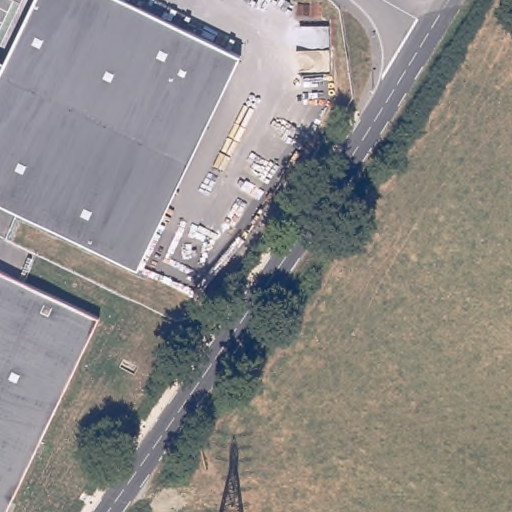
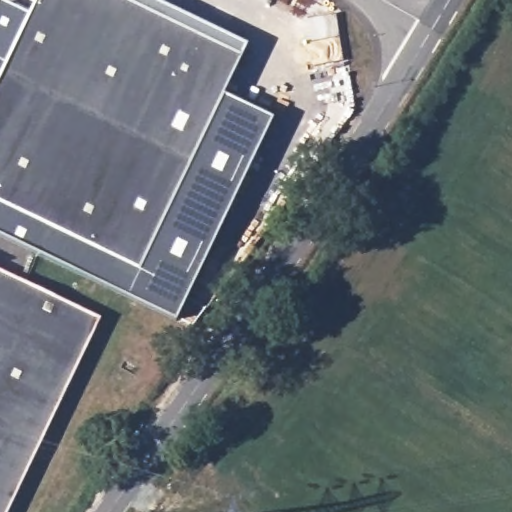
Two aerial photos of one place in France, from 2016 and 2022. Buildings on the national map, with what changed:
unchanged [(3,66),(35,0),(115,0),(240,60),(139,268),(0,200),(0,0),(1,0),(29,13),(3,66)]
new [(223,94),(272,118),(175,320),(0,235),(0,200),(139,268),(223,94)]
unchanged [(9,512),(0,512),(0,269),(104,319),(9,512)]

